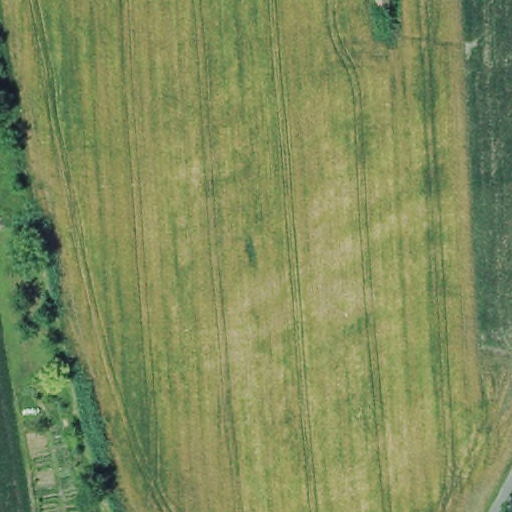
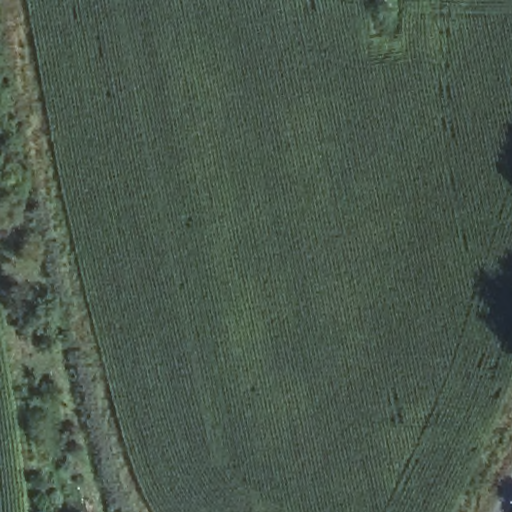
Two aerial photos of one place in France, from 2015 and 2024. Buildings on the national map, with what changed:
unchanged [(392,4),(381,5),(381,0),(392,0),(392,4)]

